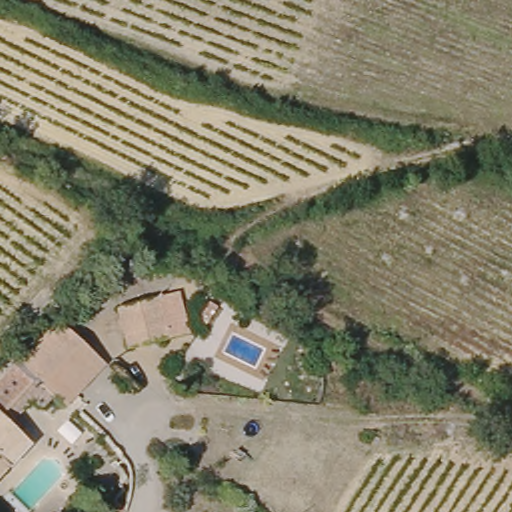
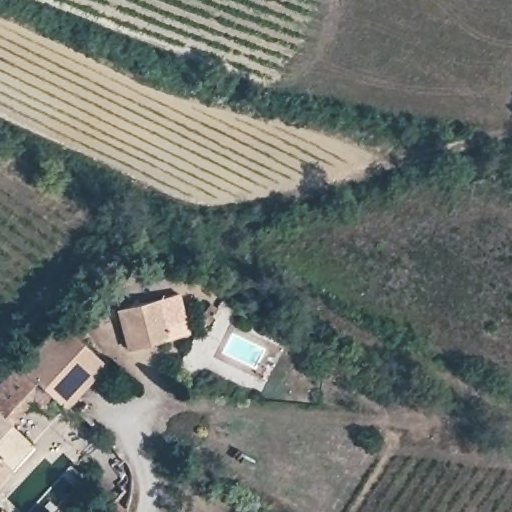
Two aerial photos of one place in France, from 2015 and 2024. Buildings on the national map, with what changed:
unchanged [(188,334),(130,352),(116,310),(177,294),(188,334)]
unchanged [(65,404),(35,376),(12,400),(30,418),(19,430),(31,442),(0,474),(0,378),(57,318),(104,362),(65,404)]

